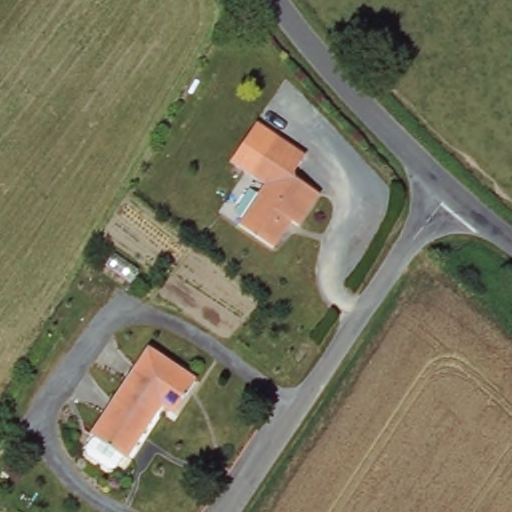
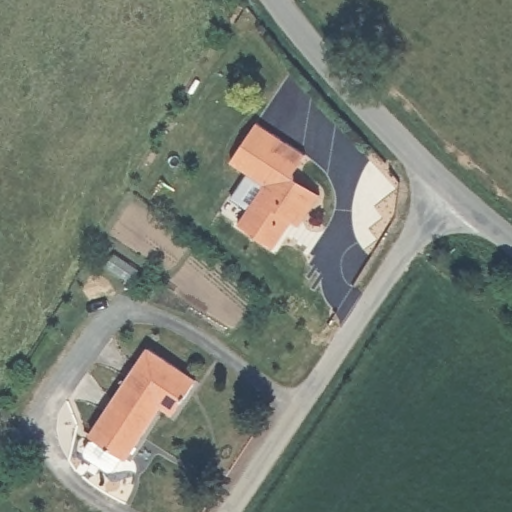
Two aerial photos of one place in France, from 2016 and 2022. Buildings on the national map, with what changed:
unchanged [(252,174),(277,136),(306,156),(296,170),(297,177),(320,193),(299,224),(291,219),(272,246),(237,223),(265,182),(252,174)]
unchanged [(147,348),(195,380),(174,412),(162,405),(127,382),(147,348)]
unchanged [(162,405),(126,460),(90,435),(127,382),(162,405)]

